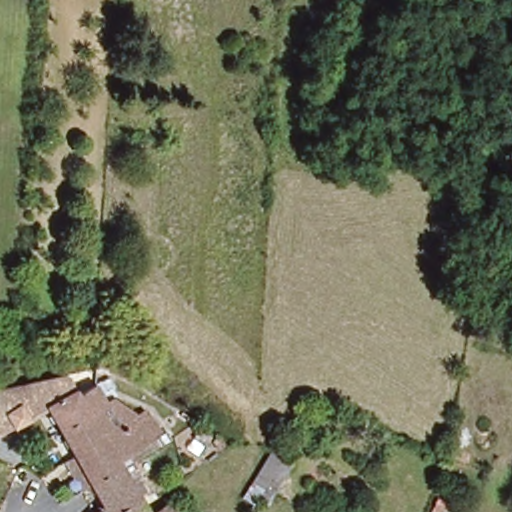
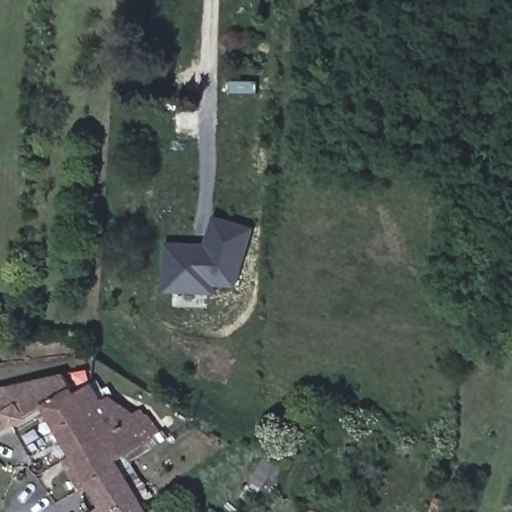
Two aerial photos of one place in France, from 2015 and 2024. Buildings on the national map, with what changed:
new [(215,215),(252,227),(233,288),(215,287),(210,295),(163,293),(167,242),(207,241),(215,215)]
unchanged [(97,439),(68,456),(59,441),(39,407),(10,423),(0,428),(0,383),(36,375),(60,373),(71,391),(97,439)]
unchanged [(79,491),(60,464),(68,456),(97,439),(71,391),(88,382),(98,399),(105,395),(130,412),(140,406),(146,414),(156,432),(109,462),(113,470),(87,486),(79,491)]
unchanged [(87,486),(113,470),(139,512),(90,512),(99,506),(87,486)]
unchanged [(178,512),(139,512),(156,501),(178,512)]

